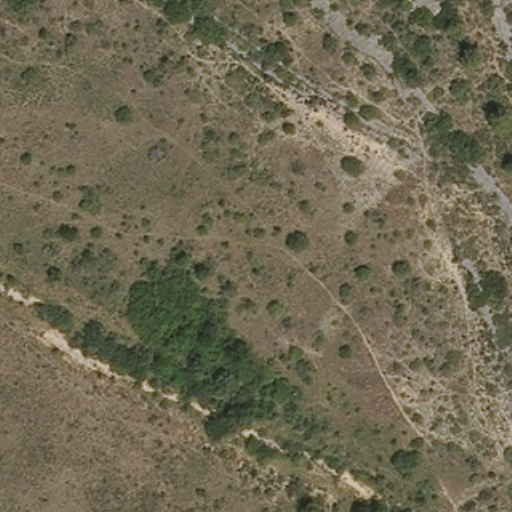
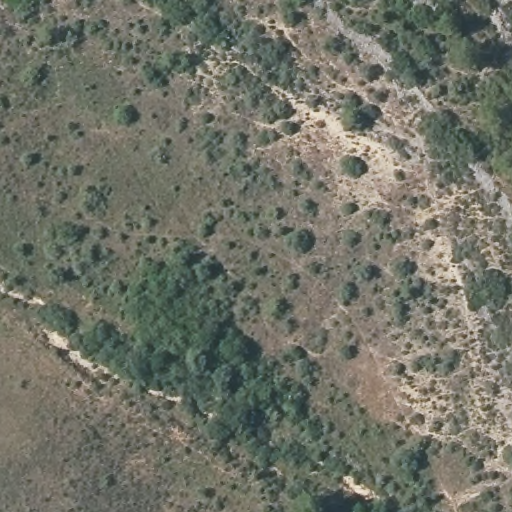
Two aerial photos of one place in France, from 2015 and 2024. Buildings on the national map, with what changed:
[]

